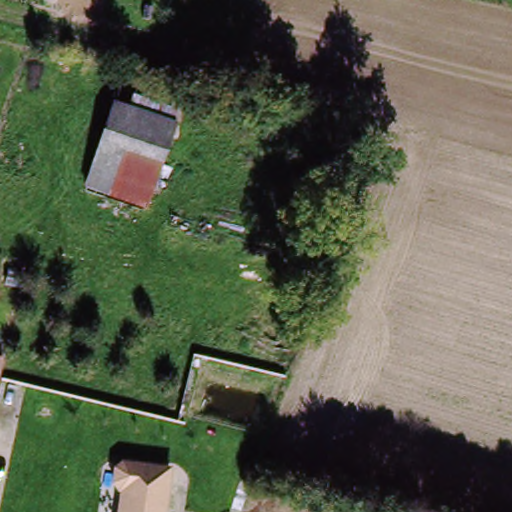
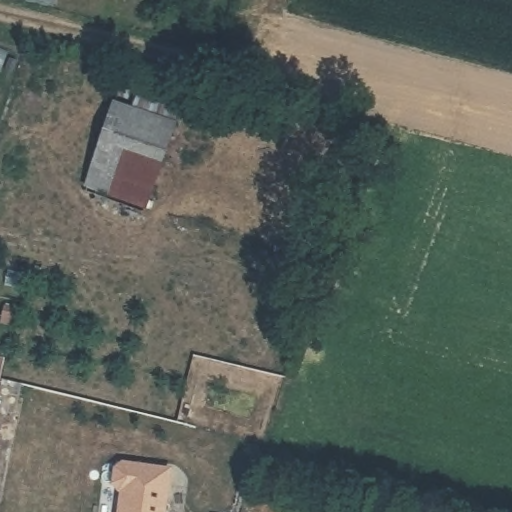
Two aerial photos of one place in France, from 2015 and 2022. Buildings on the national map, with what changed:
unchanged [(87,16),(48,2),(49,0),(94,0),(87,16)]
unchanged [(100,145),(110,104),(175,117),(165,159),(100,145)]
unchanged [(155,199),(92,183),(100,145),(165,159),(155,199)]
unchanged [(0,386),(0,358),(5,359),(0,386)]
unchanged [(168,470),(163,512),(115,512),(117,496),(108,485),(111,469),(120,462),(168,470)]

